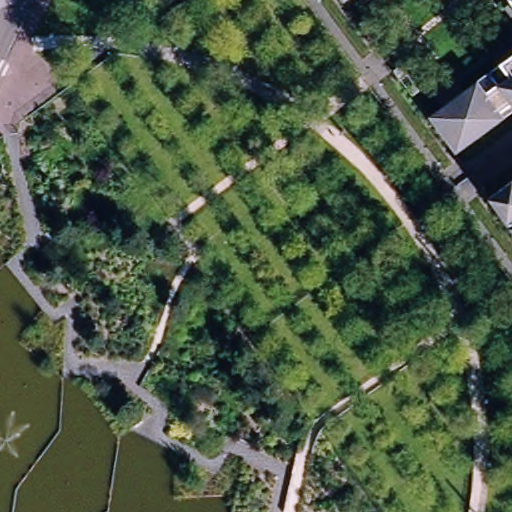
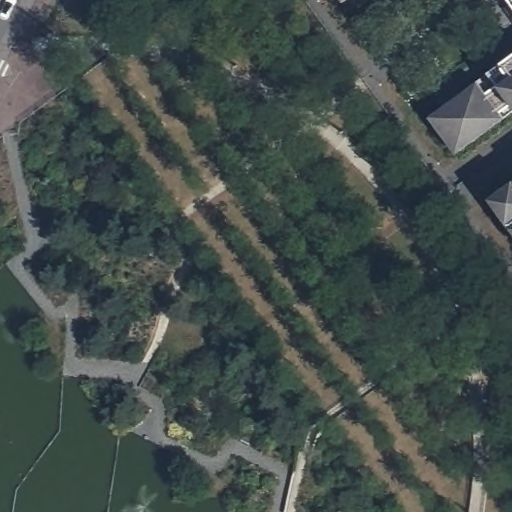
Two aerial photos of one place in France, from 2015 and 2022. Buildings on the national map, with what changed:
unchanged [(385,50),(378,54),(341,3),(339,0),(369,0),(355,9),(385,50)]
unchanged [(501,13),(510,7),(504,0),(512,0),(512,29),(501,13)]
unchanged [(488,60),(511,45),(512,47),(512,113),(510,114),(452,156),(425,118),(387,66),(393,61),(425,106),(431,101),(453,85),(460,94),(495,69),(488,60)]
unchanged [(480,201),(508,180),(512,178),(512,246),(480,201)]

